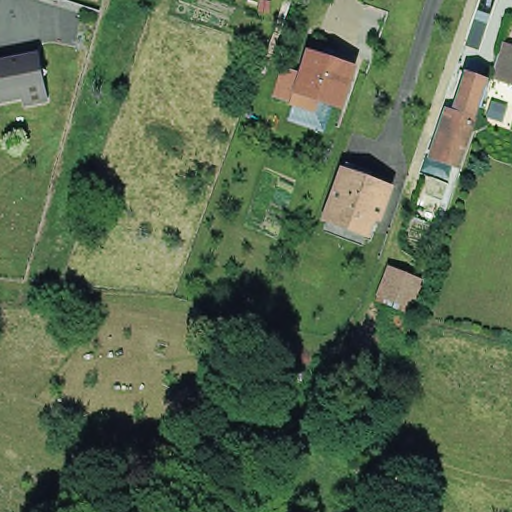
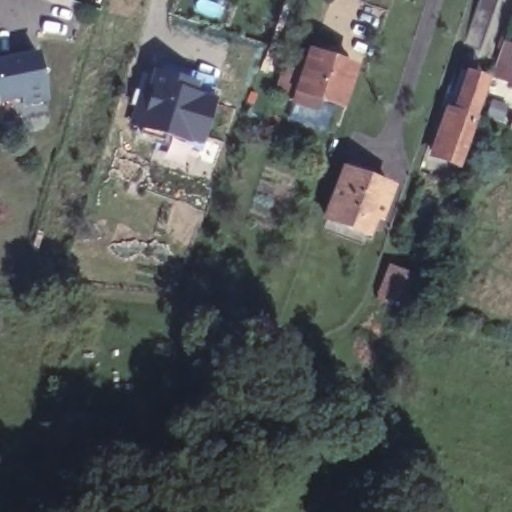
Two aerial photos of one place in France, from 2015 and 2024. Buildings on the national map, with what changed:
unchanged [(494,12),(498,0),(512,0),(512,14),(511,17),(494,12)]
unchanged [(511,36),(512,37),(512,75),(499,71),(511,36)]
unchanged [(36,47),(44,92),(24,97),(23,90),(0,93),(0,54),(36,47)]
unchanged [(359,67),(344,110),(333,107),(324,132),(288,121),(294,106),(289,105),(291,102),(273,96),(283,66),(299,72),(306,50),(359,67)]
new [(138,86),(143,87),(149,67),(202,85),(200,90),(218,95),(203,147),(128,125),(138,86)]
unchanged [(429,157),(428,157),(436,136),(439,138),(454,101),(461,82),(483,90),(485,91),(478,110),(476,110),(454,167),(429,157)]
unchanged [(343,157),(367,166),(366,172),(387,181),(376,211),(369,208),(361,226),(321,211),(343,157)]
unchanged [(378,296),(387,272),(419,284),(411,310),(378,296)]

